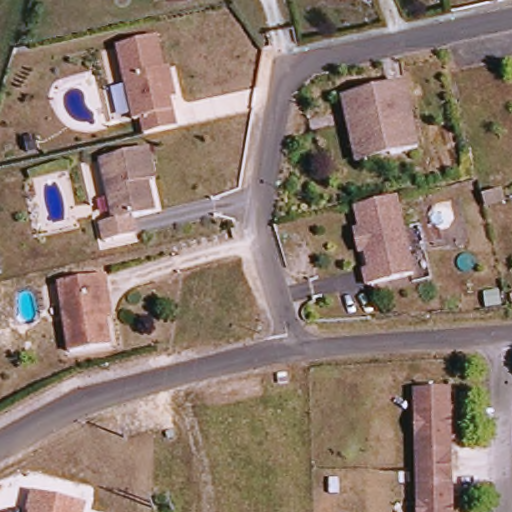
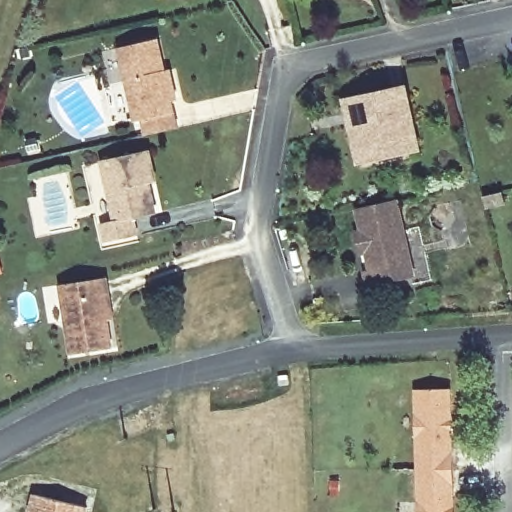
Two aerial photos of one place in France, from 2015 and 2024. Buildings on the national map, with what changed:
unchanged [(158,38),(166,69),(171,69),(177,101),(171,102),(177,129),(142,135),(140,121),(132,122),(116,48),(158,38)]
unchanged [(352,113),(348,98),(408,84),(423,149),(396,156),(364,164),(352,113)]
unchanged [(161,212),(138,217),(142,235),(112,242),(107,225),(117,222),(102,161),(153,149),(160,180),(154,182),(161,212)]
unchanged [(374,286),(370,270),(376,269),(372,251),(366,252),(362,232),(368,231),(363,208),(402,198),(421,274),(374,286)]
unchanged [(74,355),(62,285),(108,277),(111,295),(116,318),(110,320),(114,347),(74,355)]
unchanged [(423,390),(458,392),(461,465),(463,512),(429,512),(425,467),(423,390)]
unchanged [(29,512),(34,493),(90,506),(89,512),(29,512)]

